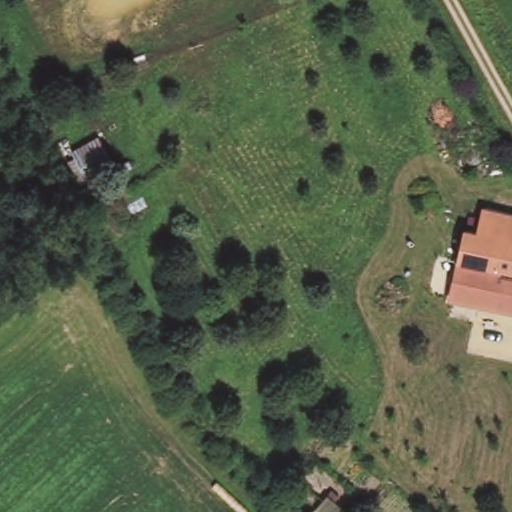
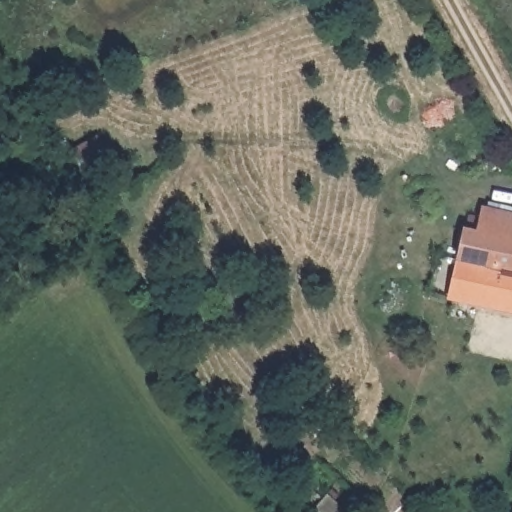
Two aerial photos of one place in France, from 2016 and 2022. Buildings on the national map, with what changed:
unchanged [(100,135),(115,165),(88,180),(78,186),(66,160),(74,156),(71,150),(100,135)]
unchanged [(463,226),(476,229),(480,205),(512,212),(512,314),(446,300),(463,226)]

